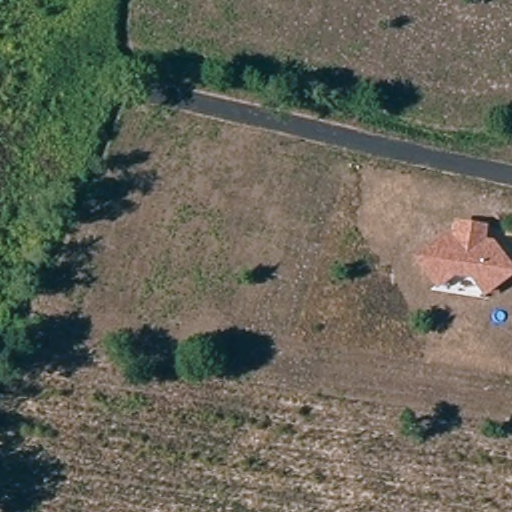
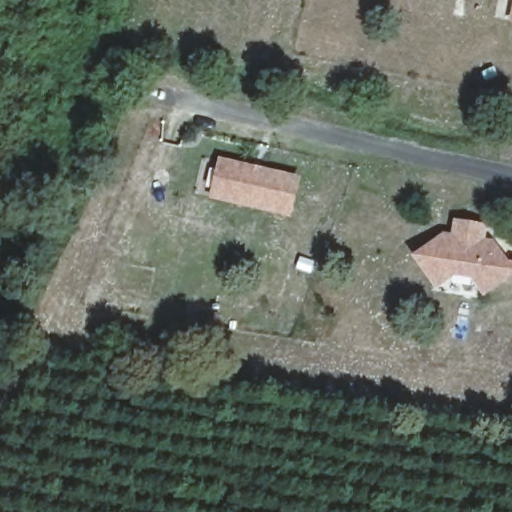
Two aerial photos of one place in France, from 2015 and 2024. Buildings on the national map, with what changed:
new [(509,22),(512,5),(512,22),(509,22)]
new [(302,176),(292,217),(209,199),(219,157),(302,176)]
unchanged [(493,240),(512,265),(512,276),(485,297),(471,279),(454,277),(436,289),(413,257),(444,233),(451,235),(454,218),(488,225),(487,239),(493,240)]

